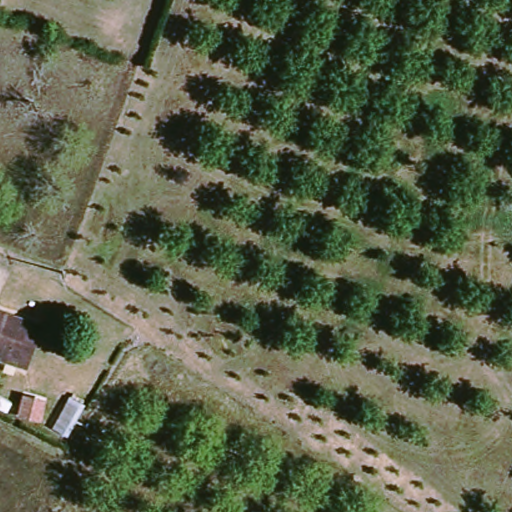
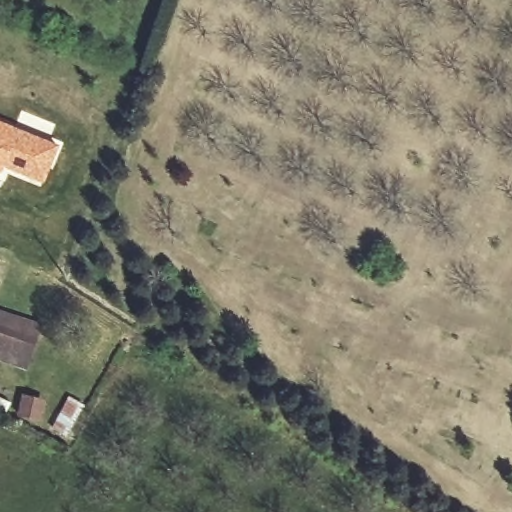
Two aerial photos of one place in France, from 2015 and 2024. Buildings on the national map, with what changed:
new [(22,110),(55,124),(49,140),(59,144),(41,185),(1,167),(0,171),(0,120),(15,126),(22,110)]
unchanged [(0,309),(12,313),(38,322),(33,335),(21,370),(0,362),(0,309)]

